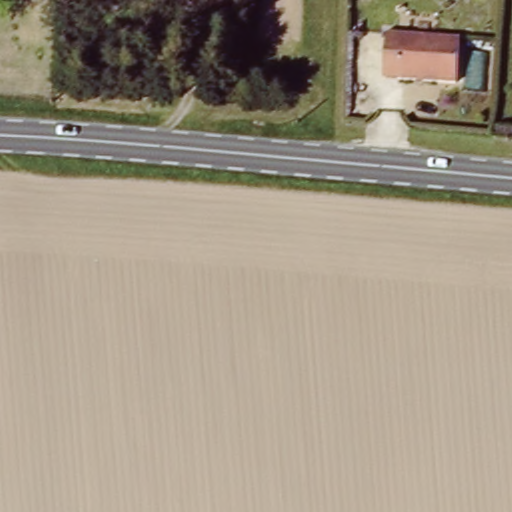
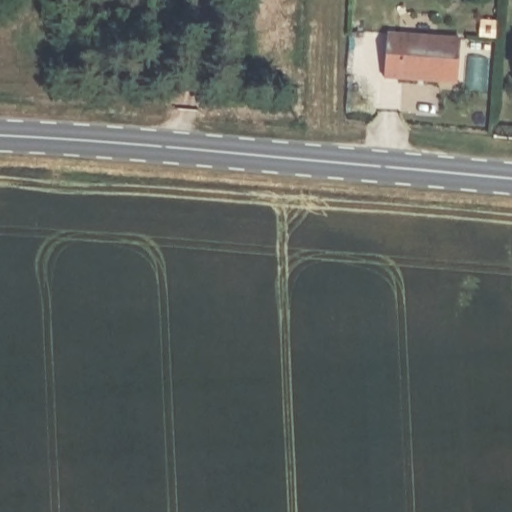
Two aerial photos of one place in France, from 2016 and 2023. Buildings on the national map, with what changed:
unchanged [(455,82),(383,80),(385,37),(456,40),(455,82)]

